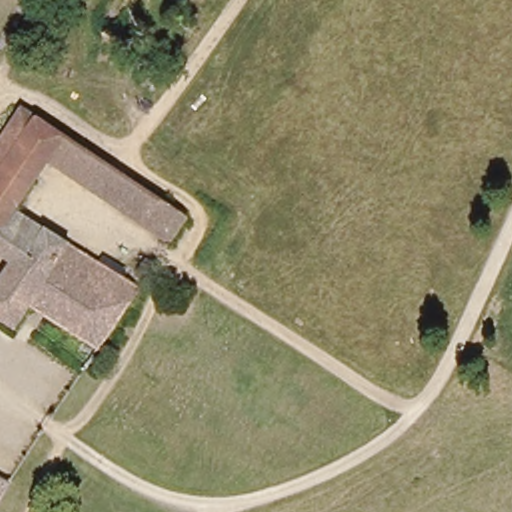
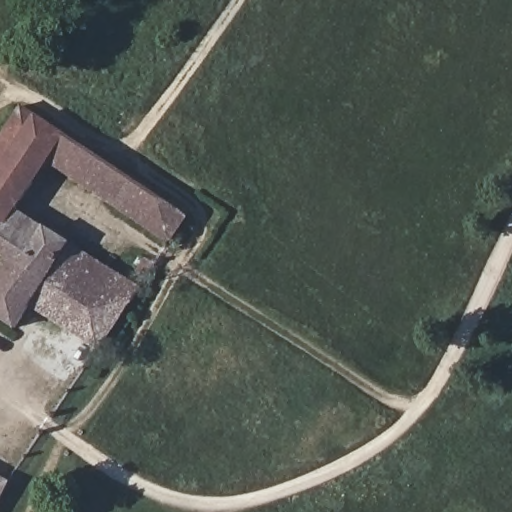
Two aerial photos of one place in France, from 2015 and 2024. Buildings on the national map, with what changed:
unchanged [(139,179),(184,208),(168,234),(47,155),(12,209),(34,225),(41,216),(70,235),(63,245),(120,283),(129,273),(138,281),(98,346),(27,305),(13,325),(0,317),(0,275),(9,260),(0,254),(0,136),(21,102),(139,179)]
unchanged [(0,275),(0,254),(9,260),(0,275)]
unchanged [(5,495),(0,503),(0,485),(7,490),(5,495)]

